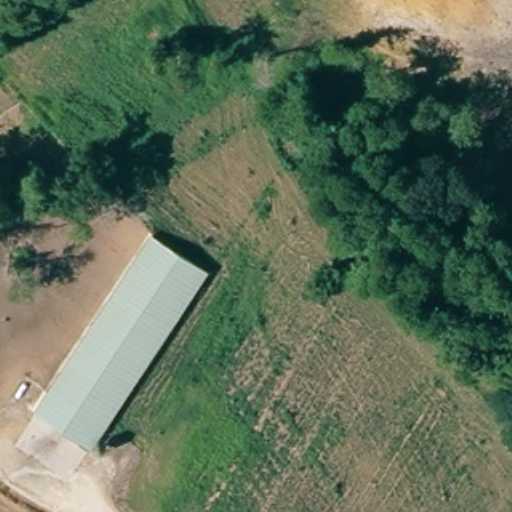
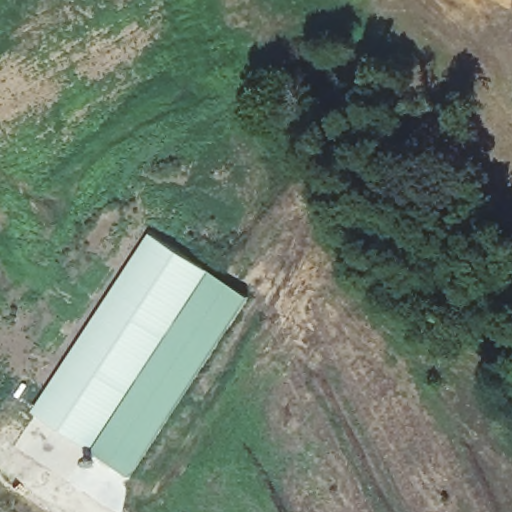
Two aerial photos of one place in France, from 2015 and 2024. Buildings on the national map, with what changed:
unchanged [(153,235),(207,271),(91,449),(35,413),(153,235)]
new [(130,478),(91,449),(207,271),(249,296),(130,478)]

